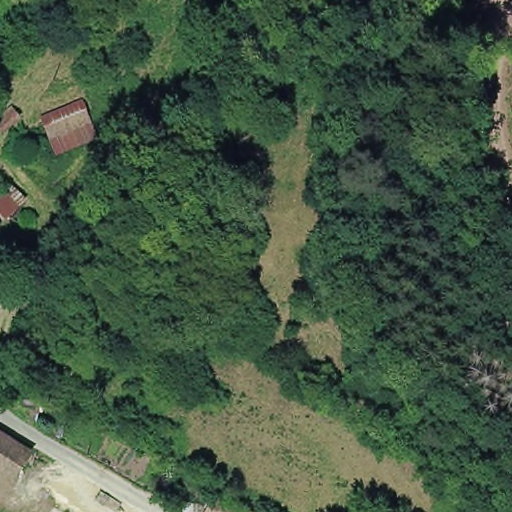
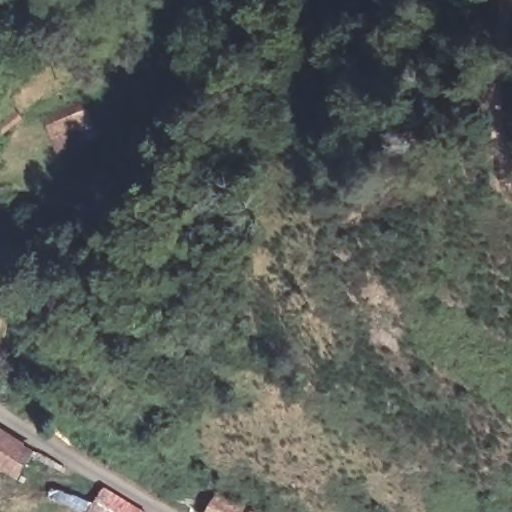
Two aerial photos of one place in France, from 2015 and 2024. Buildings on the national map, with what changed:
unchanged [(45,119),(85,102),(100,136),(61,152),(45,119)]
unchanged [(0,118),(14,108),(20,117),(2,132),(0,130),(0,118)]
unchanged [(12,214),(0,206),(0,193),(8,181),(27,191),(12,214)]
unchanged [(0,222),(0,217),(2,220),(0,222)]
unchanged [(23,475),(0,461),(0,430),(36,453),(23,475)]
unchanged [(209,512),(222,488),(257,507),(254,512),(209,512)]
unchanged [(254,512),(257,507),(266,512),(254,512)]

